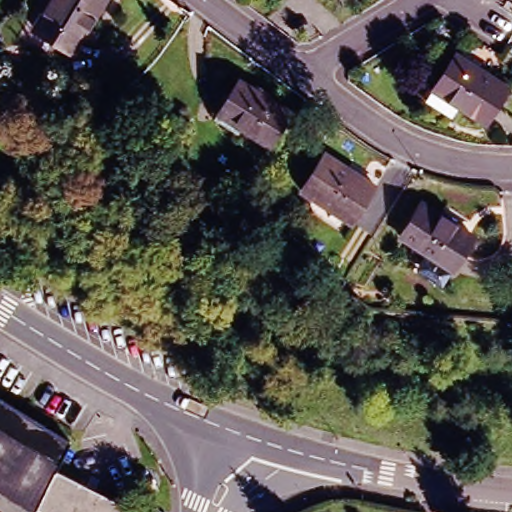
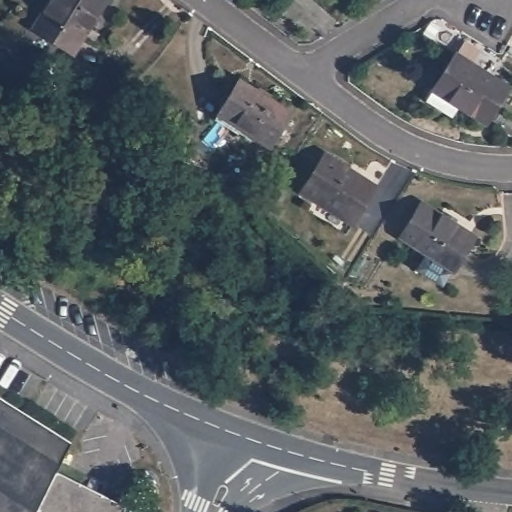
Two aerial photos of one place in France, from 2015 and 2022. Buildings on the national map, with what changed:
unchanged [(36,25),(52,0),(106,0),(74,49),(36,25)]
unchanged [(427,97),(432,87),(456,52),(509,87),(485,122),(457,104),(452,114),(427,97)]
unchanged [(290,114),(270,147),(217,114),(238,81),(290,114)]
unchanged [(373,190),(349,227),(298,196),(323,157),(373,190)]
unchanged [(467,236),(447,268),(396,237),(417,203),(467,236)]
unchanged [(54,471),(33,512),(0,512),(0,402),(67,443),(54,471)]
unchanged [(122,506),(119,512),(33,512),(54,471),(122,506)]

